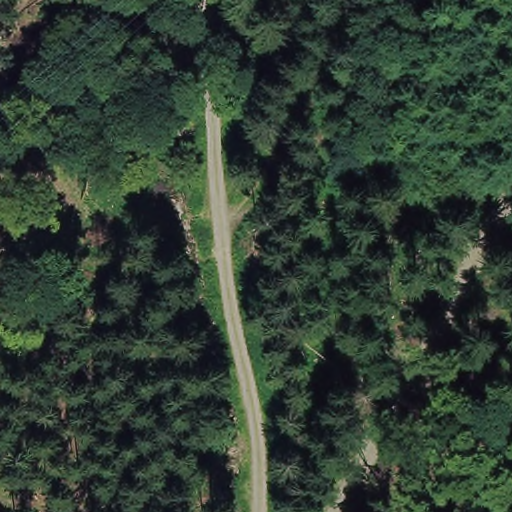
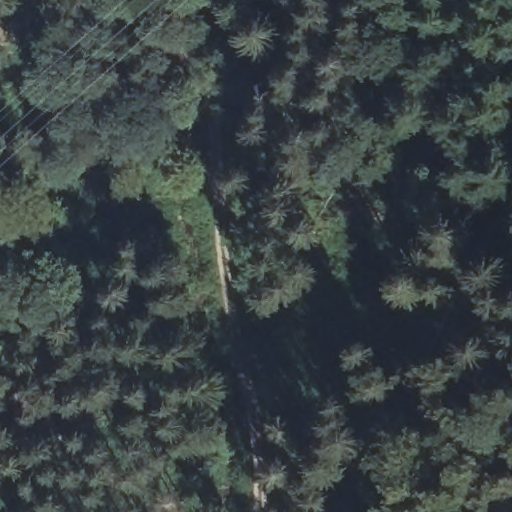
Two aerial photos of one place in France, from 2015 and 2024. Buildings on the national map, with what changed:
unchanged [(342,335),(321,334),(325,292),(346,294),(342,335)]

